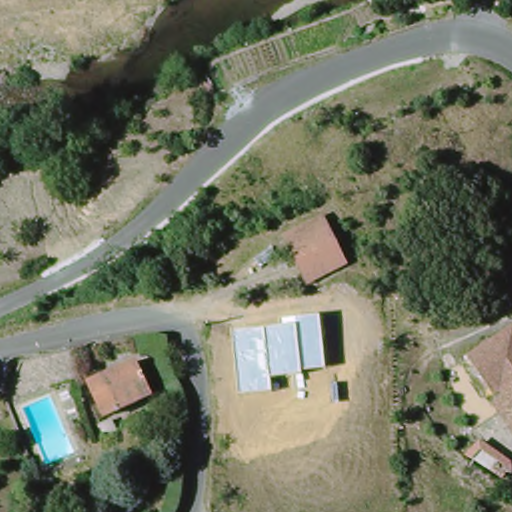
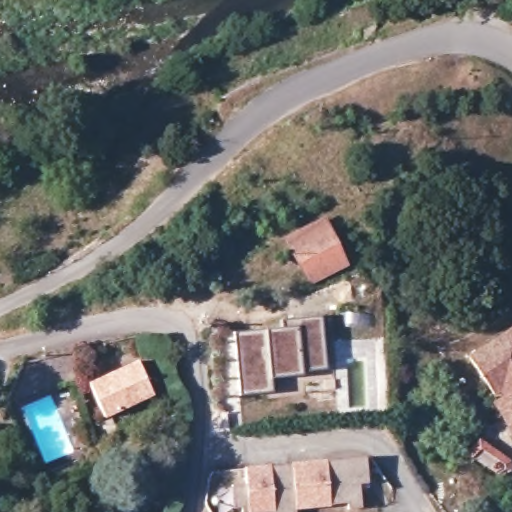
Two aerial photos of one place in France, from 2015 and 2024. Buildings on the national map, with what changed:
unchanged [(289,238),(325,218),(334,232),(353,263),(319,285),(300,255),(289,238)]
unchanged [(234,333),(281,328),(280,321),(321,316),(326,368),(303,370),(303,376),(271,379),(273,391),(240,394),(234,333)]
unchanged [(512,330),(512,419),(499,401),(504,398),(475,352),(512,330)]
demolished [(83,356),(86,382),(65,387),(59,361),(83,356)]
demolished [(55,362),(61,388),(40,393),(36,378),(33,367),(55,362)]
unchanged [(149,405),(100,414),(94,388),(105,386),(104,374),(142,367),(149,405)]
new [(359,483),(361,509),(349,510),(348,503),(331,504),(331,506),(295,510),(295,512),(241,512),(241,508),(233,508),(231,486),(245,484),(244,467),(270,465),(271,467),(291,466),(291,462),(326,459),(327,462),(365,458),(368,483),(359,483)]

